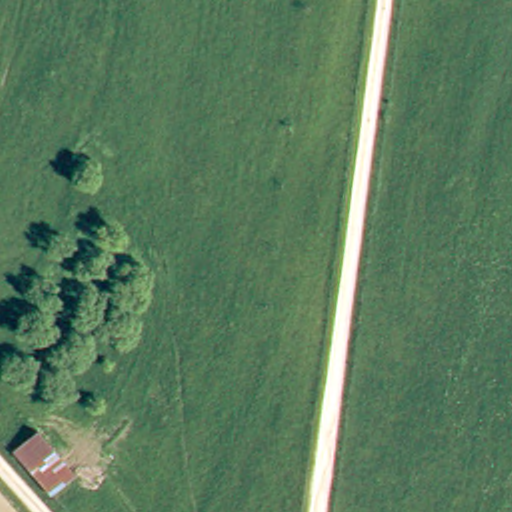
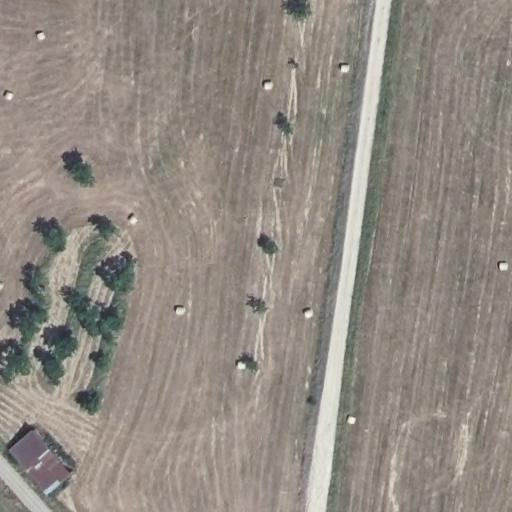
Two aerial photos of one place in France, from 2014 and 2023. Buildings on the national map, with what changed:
unchanged [(39,428),(86,467),(53,496),(15,449),(39,428)]

